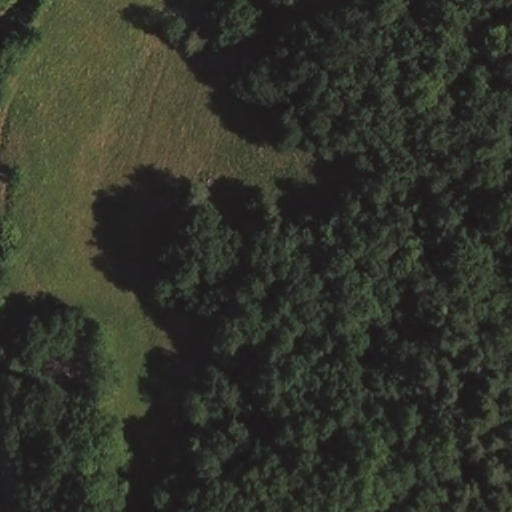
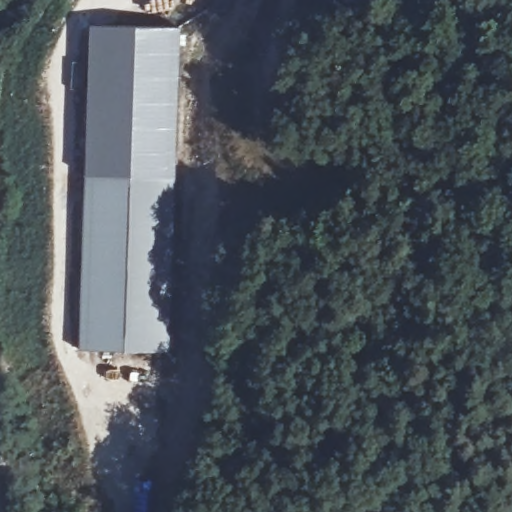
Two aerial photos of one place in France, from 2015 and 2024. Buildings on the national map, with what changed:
new [(85,176),(89,26),(181,28),(177,178),(170,352),(79,350),(85,176)]

